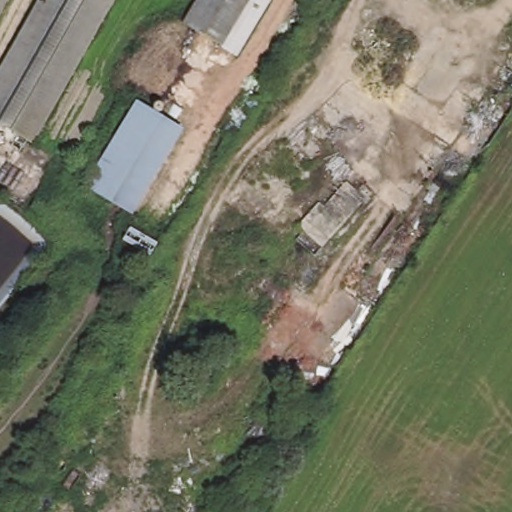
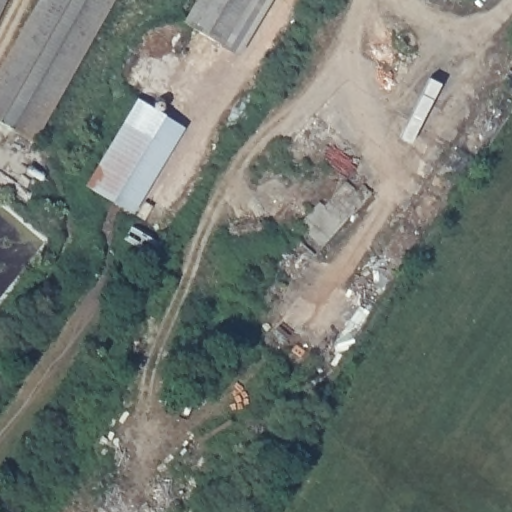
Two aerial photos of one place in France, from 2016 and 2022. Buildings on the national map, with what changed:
unchanged [(27,141),(0,124),(0,64),(37,0),(109,0),(27,141)]
unchanged [(216,41),(184,22),(196,0),(240,0),(216,41)]
unchanged [(239,54),(216,41),(240,0),(271,0),(239,54)]
unchanged [(181,123),(129,213),(90,191),(142,101),(181,123)]

